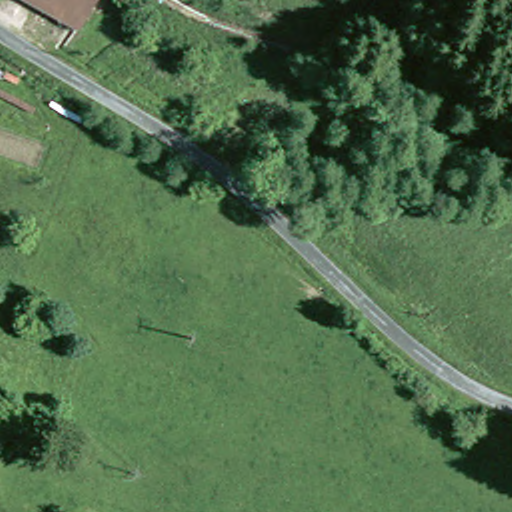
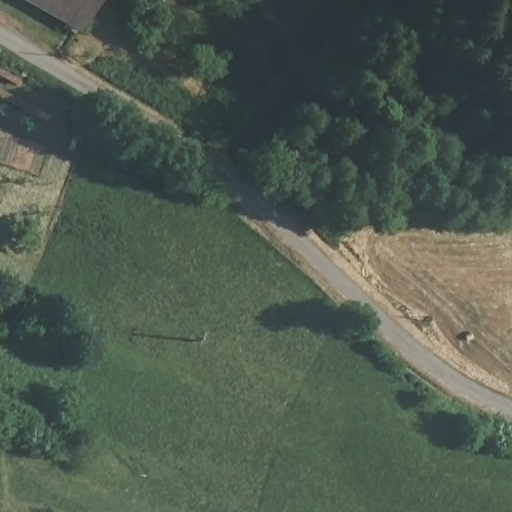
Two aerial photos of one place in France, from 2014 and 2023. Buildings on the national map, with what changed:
unchanged [(70,29),(21,0),(88,0),(70,29)]

